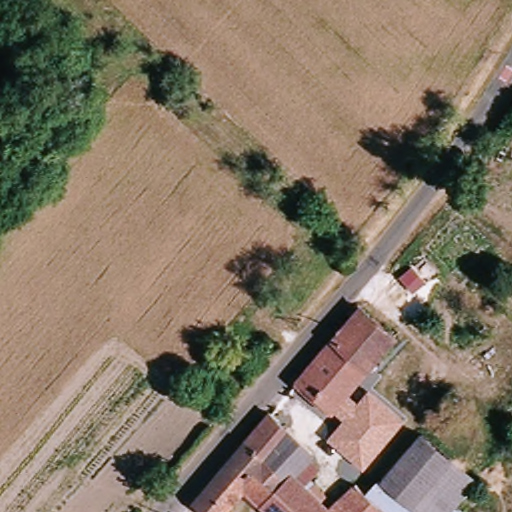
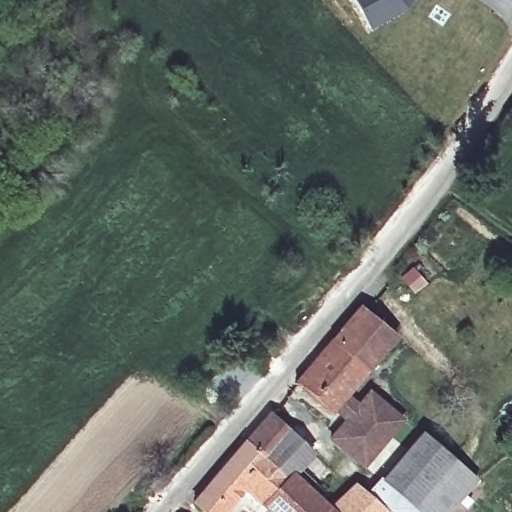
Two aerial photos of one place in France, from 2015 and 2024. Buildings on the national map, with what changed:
new [(369,26),(355,0),(410,0),(407,6),(369,26)]
unchanged [(369,367),(339,339),(366,307),(398,337),(384,352),(369,367)]
unchanged [(369,367),(347,391),(341,398),(329,410),(300,384),(339,339),(369,367)]
unchanged [(359,400),(368,388),(406,419),(366,468),(328,439),(345,417),(332,407),(341,398),(347,391),(359,400)]
unchanged [(252,488),(227,512),(213,512),(199,500),(255,436),(275,412),(302,437),(317,452),(297,474),(335,509),(339,512),(276,512),(252,488)]
unchanged [(380,474),(383,476),(426,428),(449,447),(394,508),(391,512),(390,512),(366,490),(380,474)]
unchanged [(488,483),(461,512),(431,512),(429,511),(429,512),(398,512),(394,508),(449,447),(488,483)]
unchanged [(355,480),(366,490),(390,512),(339,512),(330,504),(355,480)]
unchanged [(393,510),(394,508),(398,512),(391,512),(393,510)]
unchanged [(189,511),(191,512),(189,512),(189,511)]

